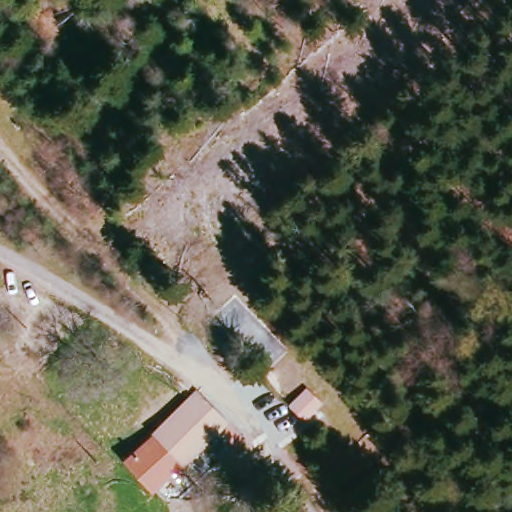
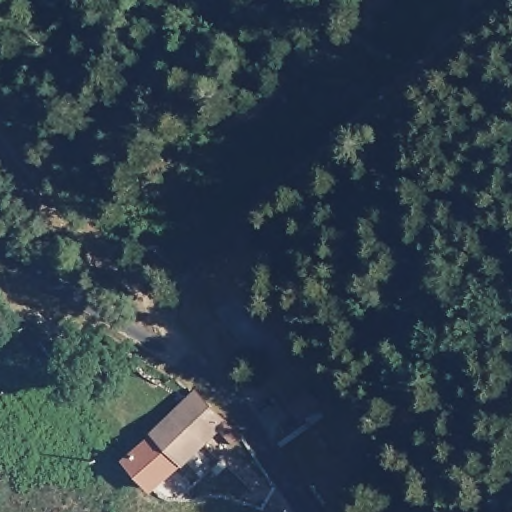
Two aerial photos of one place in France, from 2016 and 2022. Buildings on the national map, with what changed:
unchanged [(291,404),(308,390),(320,402),(302,417),(291,404)]
unchanged [(183,394),(190,398),(196,394),(216,415),(218,419),(230,436),(221,445),(208,429),(143,492),(125,472),(116,461),(183,394)]

